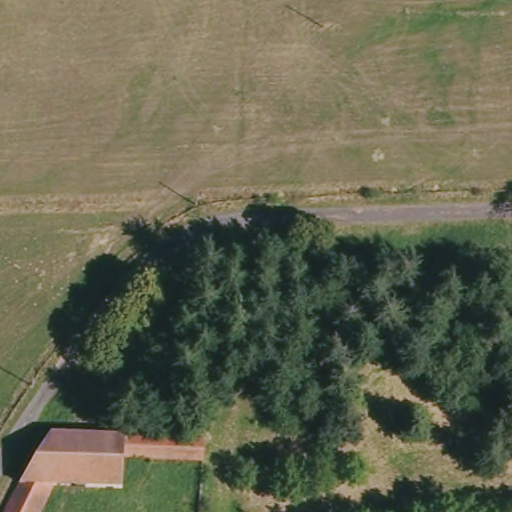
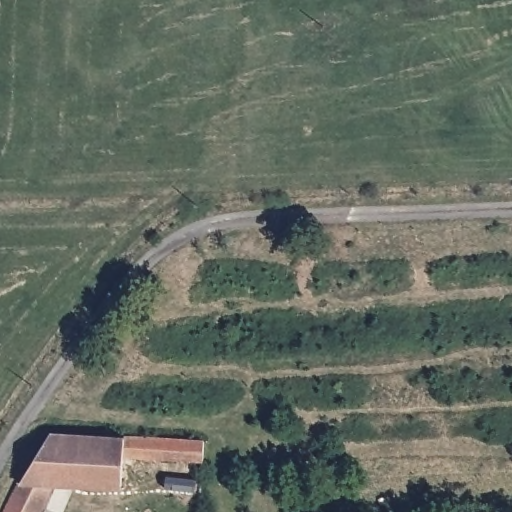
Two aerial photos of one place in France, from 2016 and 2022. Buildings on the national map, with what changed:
unchanged [(29,452),(46,425),(196,436),(196,457),(126,452),(124,480),(53,475),(18,473),(29,452)]
unchanged [(18,473),(53,475),(35,512),(0,512),(0,511),(16,477),(18,473)]

